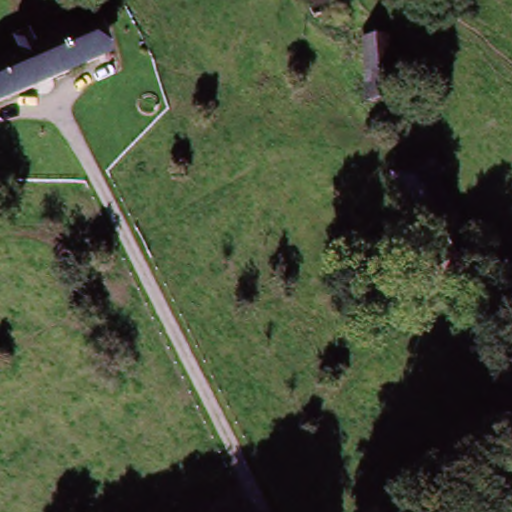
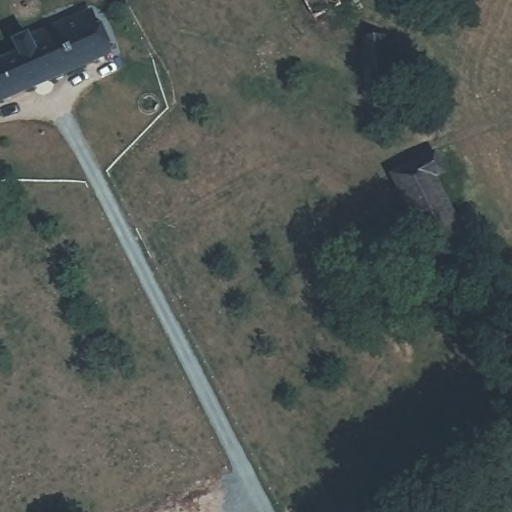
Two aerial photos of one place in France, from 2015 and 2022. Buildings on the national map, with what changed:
unchanged [(312,37),(303,0),(332,0),(340,31),(312,37)]
unchanged [(0,101),(0,53),(98,8),(117,50),(0,101)]
unchanged [(390,103),(364,104),(359,35),(377,33),(377,44),(390,44),(390,103)]
unchanged [(442,180),(433,186),(469,252),(437,270),(389,184),(432,159),(442,180)]
unchanged [(433,186),(442,180),(456,171),(493,239),(469,252),(433,186)]

